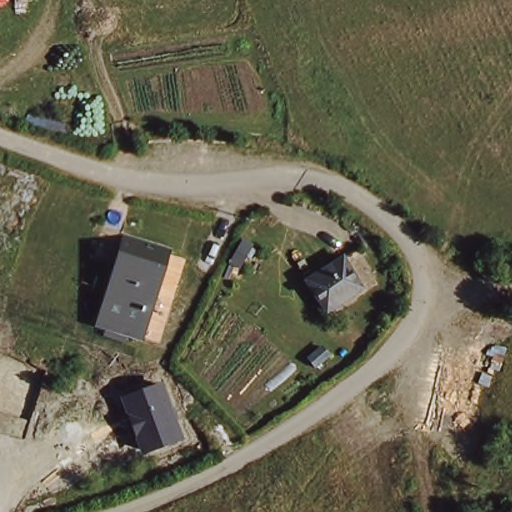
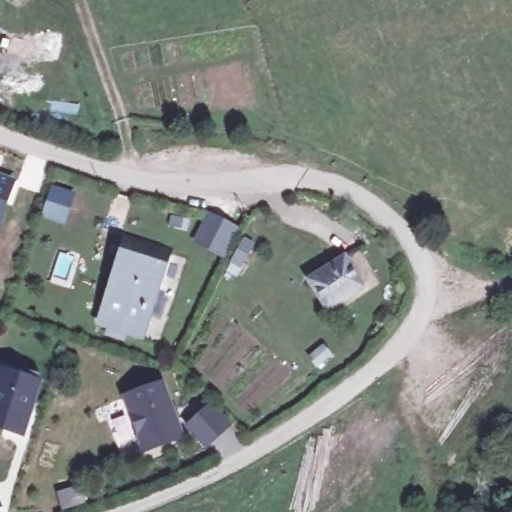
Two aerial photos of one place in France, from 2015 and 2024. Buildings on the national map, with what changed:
new [(16,181),(0,226),(0,176),(16,181)]
new [(195,243),(208,216),(235,229),(222,256),(195,243)]
unchanged [(155,296),(148,295),(135,335),(96,324),(113,274),(125,239),(137,243),(170,254),(155,296)]
unchanged [(342,252),(360,282),(323,304),(306,276),(342,252)]
new [(25,439),(0,431),(0,368),(42,381),(25,439)]
unchanged [(122,397),(162,382),(184,440),(143,454),(122,397)]
new [(211,405),(229,425),(207,445),(189,425),(211,405)]
new [(0,508),(0,498),(4,506),(0,508)]

